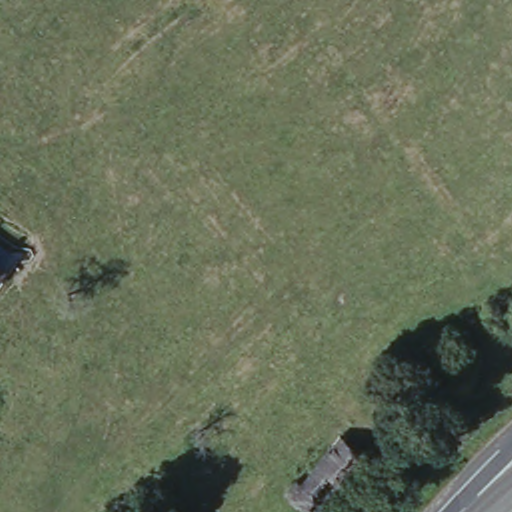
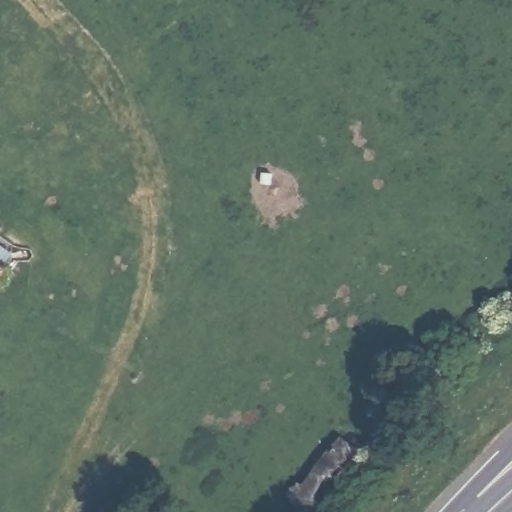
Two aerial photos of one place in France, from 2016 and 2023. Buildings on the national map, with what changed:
unchanged [(8,258),(0,269),(0,252),(8,258)]
unchanged [(303,481),(345,438),(368,458),(320,512),(312,512),(288,490),(300,476),(303,481)]

